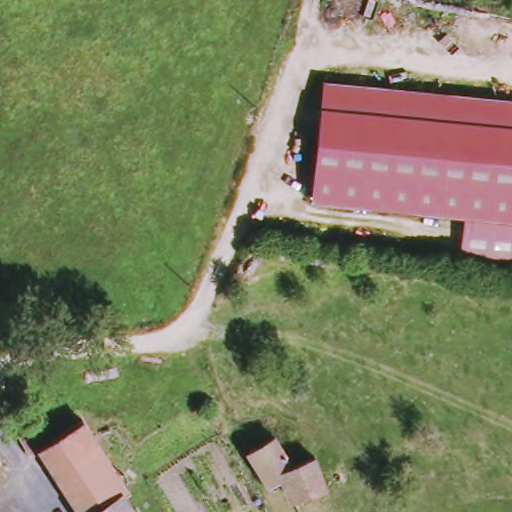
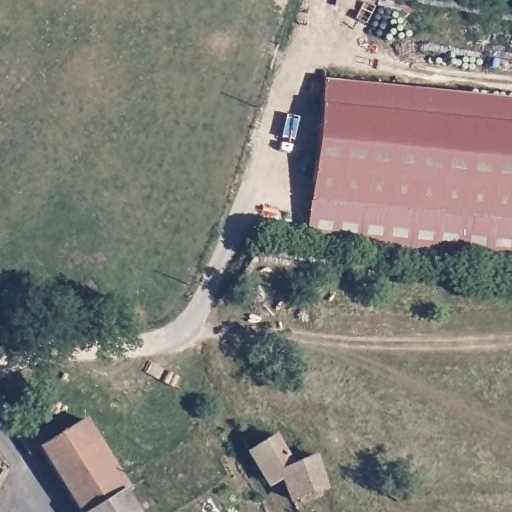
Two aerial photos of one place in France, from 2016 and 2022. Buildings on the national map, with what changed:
unchanged [(321,109),(326,84),(512,100),(512,222),(311,203),(321,109)]
unchanged [(460,256),(464,217),(512,222),(512,261),(460,256)]
unchanged [(43,432),(53,447),(89,425),(133,494),(129,500),(138,512),(87,512),(51,457),(37,461),(25,443),(28,442),(43,432)]
unchanged [(278,438),(299,466),(318,459),(330,493),(296,503),(285,477),(272,487),(250,454),(267,443),(278,438)]

